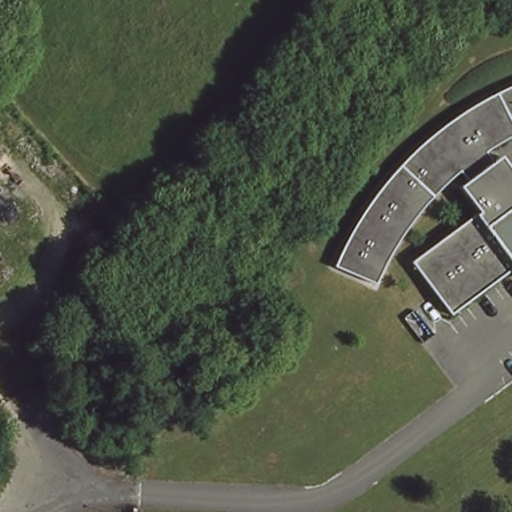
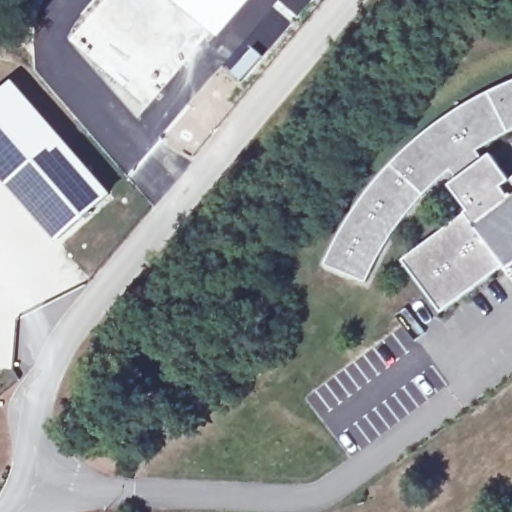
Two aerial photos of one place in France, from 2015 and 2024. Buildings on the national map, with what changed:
new [(221,37),(177,0),(252,0),(221,37)]
unchanged [(511,124),(480,142),(439,176),(422,193),(403,217),(380,251),(366,280),(325,257),(348,213),(375,176),(408,141),(439,115),(478,91),(511,74),(512,73),(512,124),(511,124)]
new [(113,194),(58,242),(0,176),(0,89),(13,78),(113,194)]
unchanged [(445,318),(404,267),(469,218),(439,176),(480,142),(512,186),(512,266),(505,272),(445,318)]
unchanged [(505,272),(512,266),(512,280),(505,272)]

